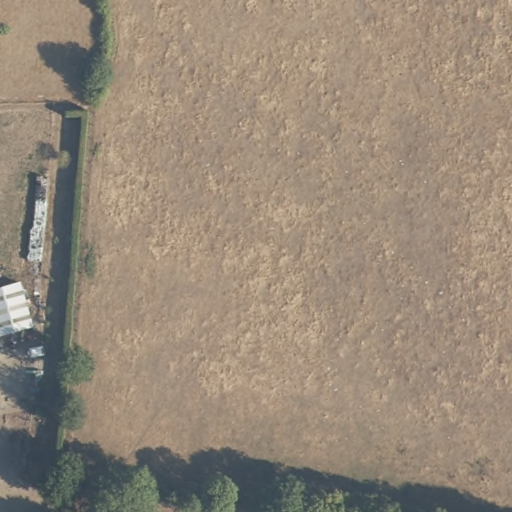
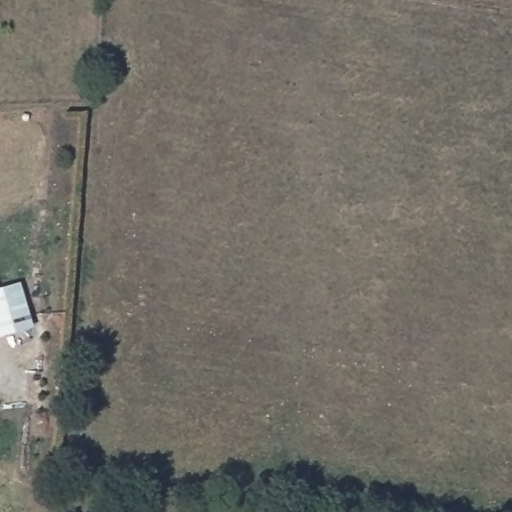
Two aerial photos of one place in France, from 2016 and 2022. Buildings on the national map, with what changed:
unchanged [(35,325),(0,334),(0,285),(22,278),(35,325)]

